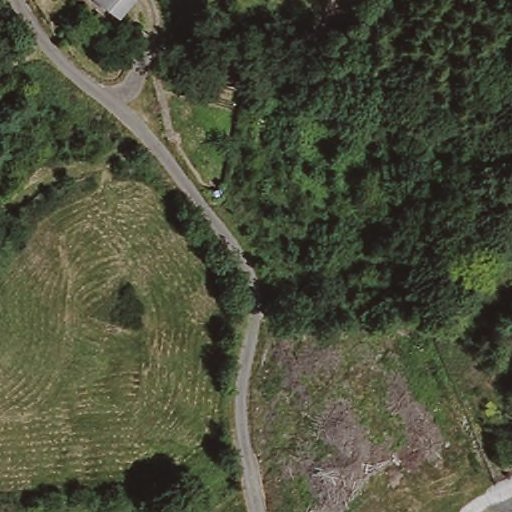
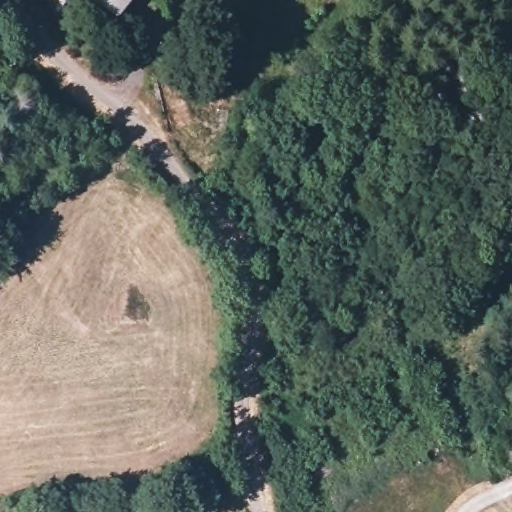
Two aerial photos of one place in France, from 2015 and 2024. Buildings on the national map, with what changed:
unchanged [(98,0),(131,0),(116,15),(98,0)]

